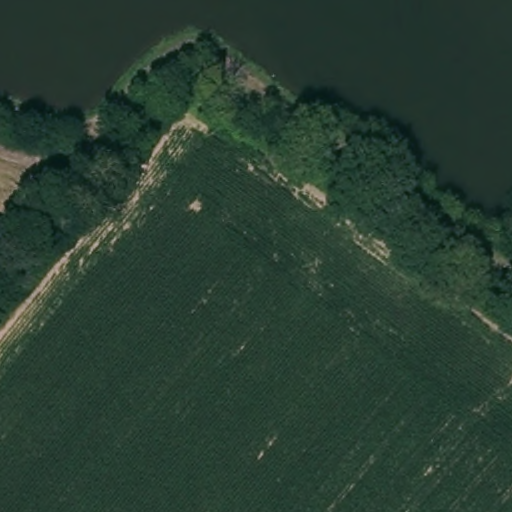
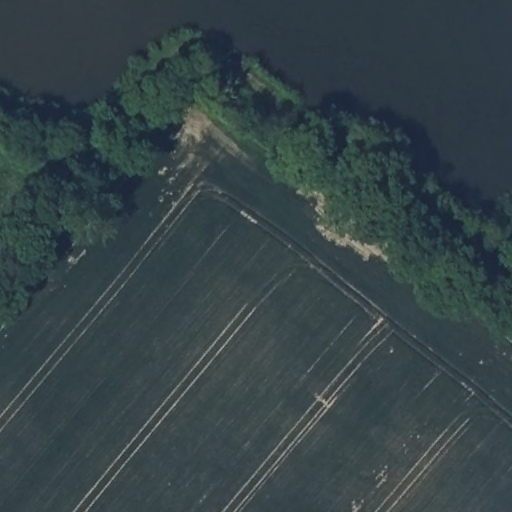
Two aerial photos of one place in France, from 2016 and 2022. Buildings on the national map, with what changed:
[]

